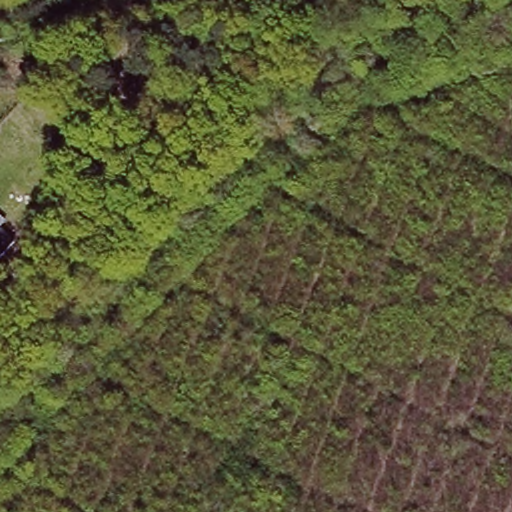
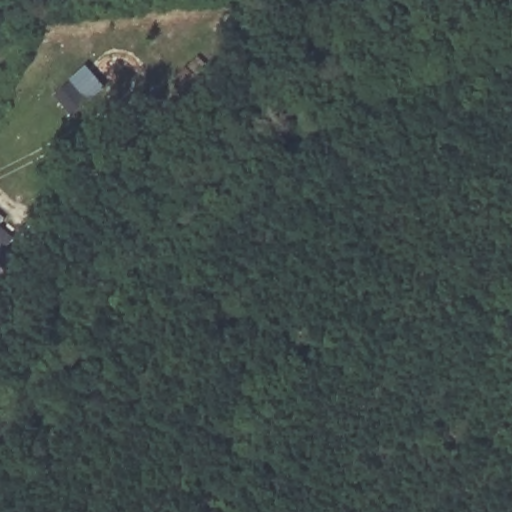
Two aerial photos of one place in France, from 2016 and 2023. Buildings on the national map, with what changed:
unchanged [(3,220),(0,223),(0,217),(3,220)]

